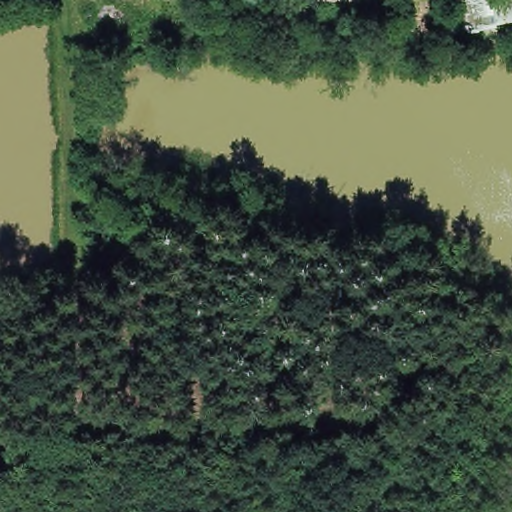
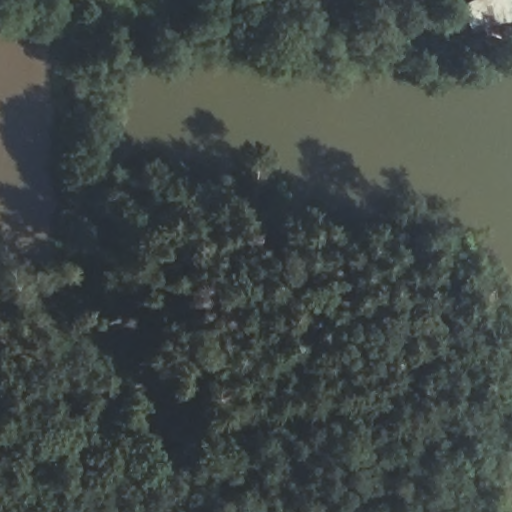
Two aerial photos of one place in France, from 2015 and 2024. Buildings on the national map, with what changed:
unchanged [(461,31),(453,0),(455,0),(512,0),(512,19),(496,24),(461,31)]

